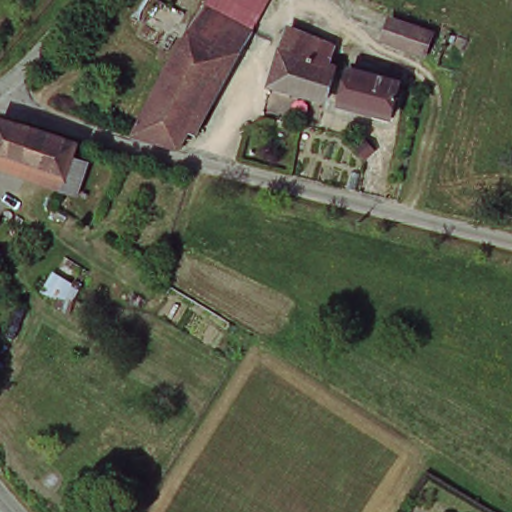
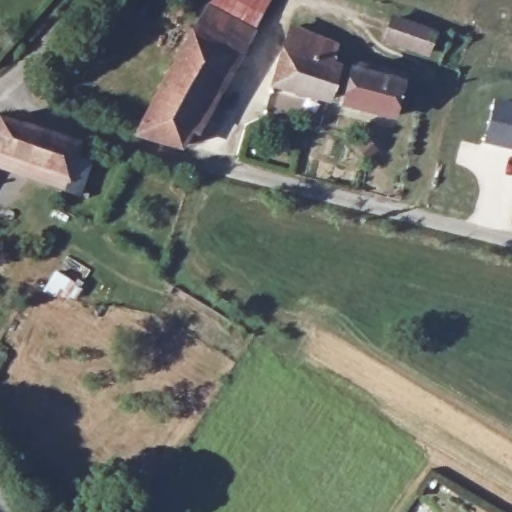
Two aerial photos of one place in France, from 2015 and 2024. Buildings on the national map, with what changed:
unchanged [(262,6),(255,21),(248,33),(237,27),(181,132),(143,122),(208,0),(252,0),(262,6)]
unchanged [(299,20),(306,12),(341,25),(332,52),(341,55),(329,102),(276,87),(295,17),(299,20)]
unchanged [(380,45),(390,17),(434,29),(426,60),(380,45)]
unchanged [(398,79),(388,119),(337,106),(347,66),(398,79)]
new [(495,103),(512,107),(512,146),(485,140),(495,103)]
unchanged [(63,170),(77,175),(70,197),(0,175),(0,134),(67,155),(63,170)]

